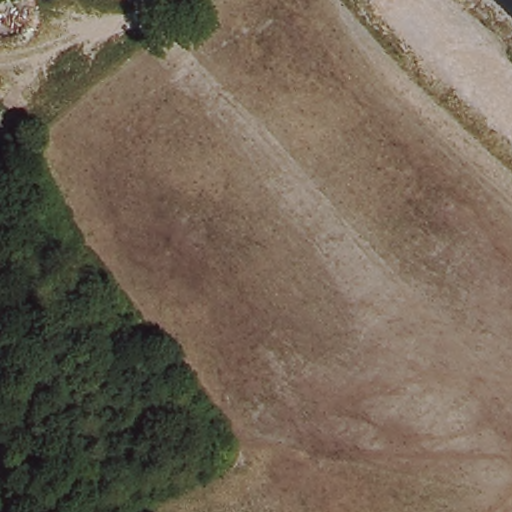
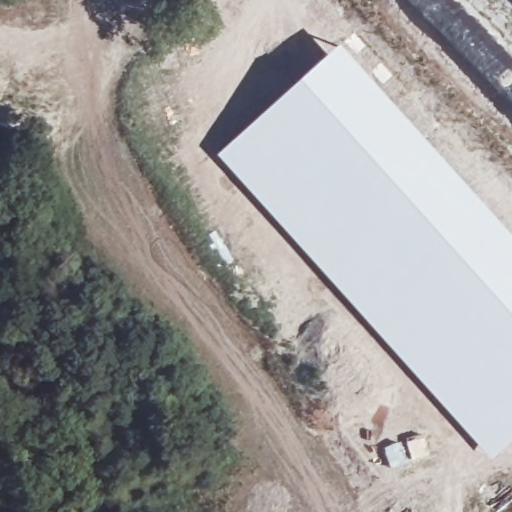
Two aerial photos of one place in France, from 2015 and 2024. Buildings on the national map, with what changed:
new [(342,41),(382,88),(438,150),(512,233),(512,441),(492,459),(217,153),(342,41)]
new [(400,442),(402,451),(407,450),(405,442),(421,437),(427,454),(390,468),(382,448),(400,442)]

